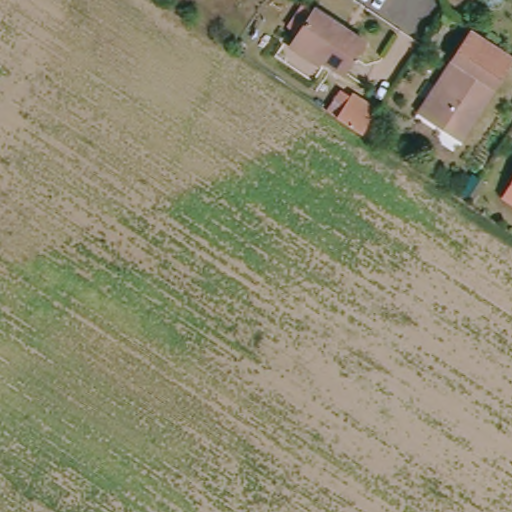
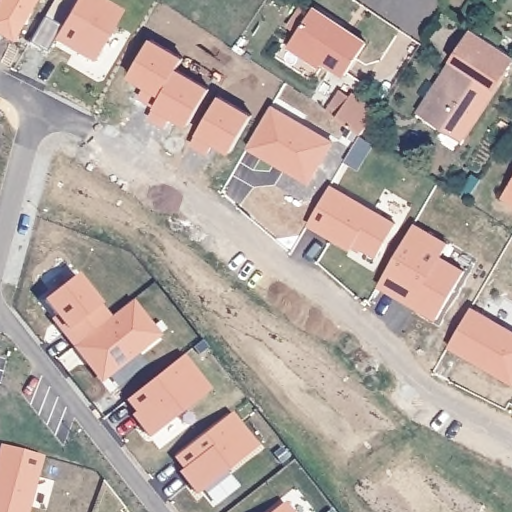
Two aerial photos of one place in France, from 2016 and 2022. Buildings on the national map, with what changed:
new [(77,0),(104,0),(123,11),(94,60),(55,38),(47,51),(30,41),(45,15),(62,25),(77,0)]
unchanged [(350,78),(295,44),(317,12),(370,47),(350,78)]
unchanged [(512,65),(464,145),(425,121),(459,70),(452,64),(475,29),(512,55),(512,65)]
new [(152,38),(185,57),(179,69),(212,88),(190,124),(174,114),(167,125),(151,116),(157,104),(141,95),(147,84),(132,74),(152,38)]
unchanged [(376,107),(360,130),(335,114),(326,108),(340,88),(350,94),(352,91),(376,107)]
new [(222,95),(255,115),(233,151),(217,141),(210,152),(194,143),(222,95)]
new [(271,107),(329,140),(305,180),(247,148),(271,107)]
new [(332,185),(399,224),(380,257),(357,244),(353,249),(310,224),(332,185)]
unchanged [(512,189),(512,199),(507,197),(512,189)]
new [(76,274),(110,318),(74,346),(64,333),(67,329),(45,299),(76,274)]
new [(110,318),(132,300),(160,335),(105,378),(91,359),(85,359),(74,346),(110,318)]
new [(512,330),(512,380),(452,347),(473,308),(512,330)]
new [(183,356),(210,390),(150,437),(133,415),(137,412),(127,399),(183,356)]
new [(230,414),(257,448),(198,495),(180,473),(185,469),(175,458),(230,414)]
new [(2,446),(42,457),(27,512),(0,512),(0,451),(2,446)]
new [(284,504),(290,512),(274,512),(284,504)]

